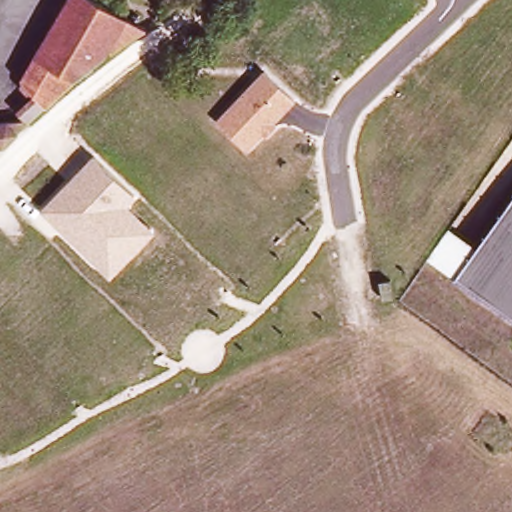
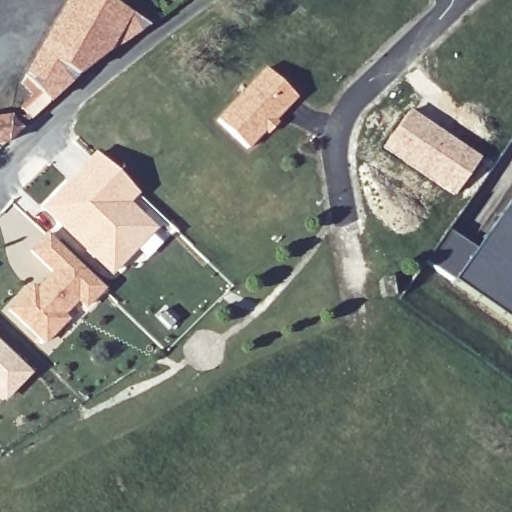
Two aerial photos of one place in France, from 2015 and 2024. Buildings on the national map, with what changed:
unchanged [(107,54),(104,60),(45,108),(2,150),(0,151),(0,114),(1,125),(23,121),(18,116),(33,103),(20,90),(70,0),(91,0),(146,32),(112,56),(107,54)]
unchanged [(299,99),(249,151),(218,118),(266,67),(299,99)]
new [(408,110),(478,160),(451,199),(380,148),(408,110)]
unchanged [(139,193),(130,204),(156,229),(112,276),(42,208),(95,152),(139,193)]
unchanged [(473,252),(512,197),(512,321),(426,260),(446,232),(473,252)]
new [(103,291),(85,310),(76,302),(64,316),(69,321),(45,347),(6,311),(30,285),(36,288),(49,274),(26,252),(45,232),(103,291)]
new [(0,395),(0,350),(17,367),(26,376),(3,399),(0,395)]

